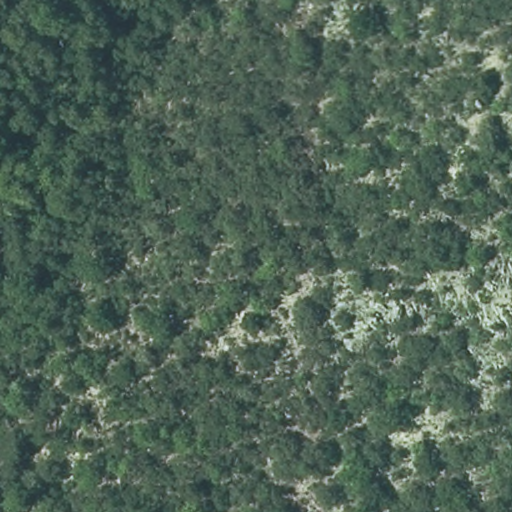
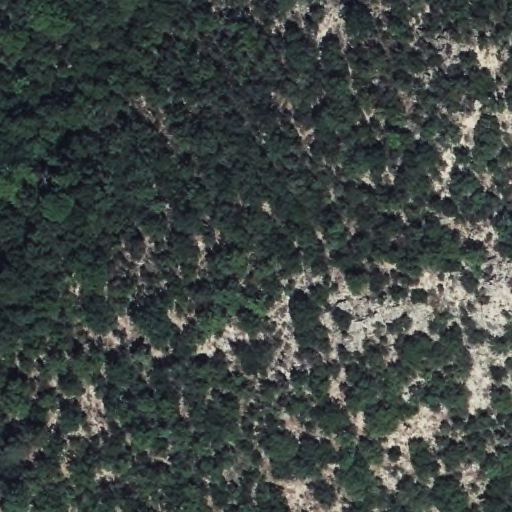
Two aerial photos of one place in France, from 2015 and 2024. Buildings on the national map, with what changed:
[]

